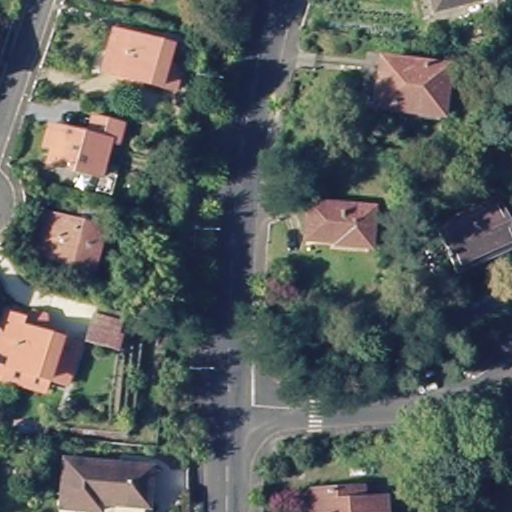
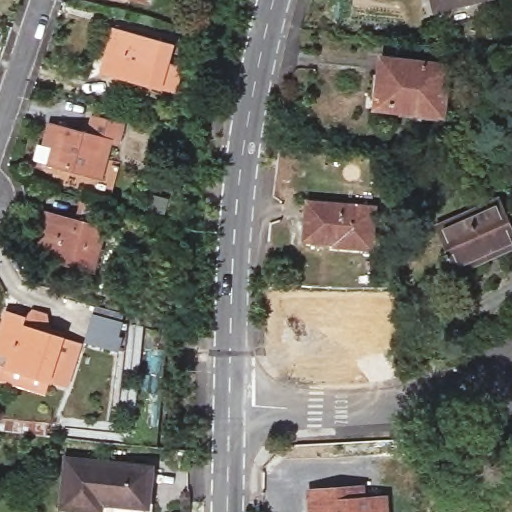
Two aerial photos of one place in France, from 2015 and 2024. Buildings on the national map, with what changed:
unchanged [(136,0),(152,0),(151,4),(136,0)]
unchanged [(433,12),(430,0),(486,0),(433,12)]
unchanged [(120,77),(103,72),(116,30),(173,47),(168,66),(182,70),(175,94),(141,84),(120,77)]
unchanged [(447,68),(441,120),(420,117),(421,111),(375,106),(378,75),(383,76),(385,61),(447,68)]
unchanged [(86,144),(91,127),(122,135),(117,153),(109,150),(97,186),(46,171),(50,156),(41,154),(47,133),(86,144)]
unchanged [(310,201),(375,206),(371,246),(337,244),(338,241),(306,239),(310,201)]
unchanged [(504,201),(512,218),(512,255),(463,277),(441,230),(504,201)]
unchanged [(38,260),(51,220),(81,229),(88,205),(102,209),(115,212),(96,277),(75,271),(55,265),(38,260)]
unchanged [(9,367),(0,365),(0,347),(10,313),(24,317),(32,311),(46,315),(41,332),(63,338),(82,343),(78,357),(69,385),(51,379),(47,391),(5,380),(9,367)]
unchanged [(125,322),(122,332),(127,333),(122,354),(89,344),(99,313),(125,322)]
unchanged [(153,468),(148,512),(108,512),(61,505),(66,456),(153,468)]
unchanged [(312,493),(348,490),(349,502),(383,501),(384,512),(313,512),(312,493)]

